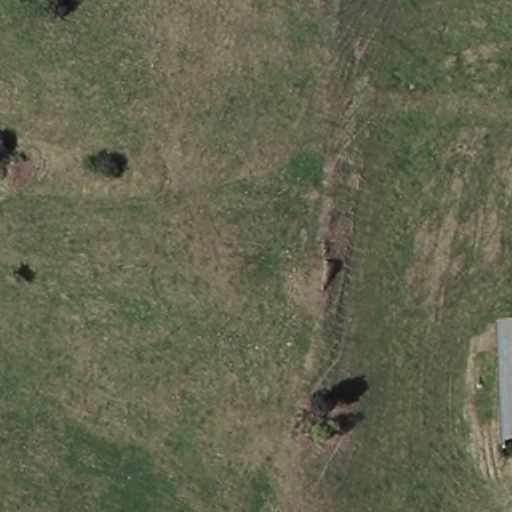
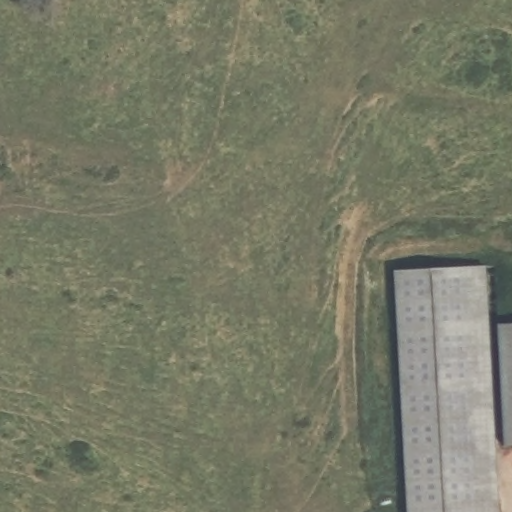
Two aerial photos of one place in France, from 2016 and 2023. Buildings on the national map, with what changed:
new [(495,268),(495,326),(497,443),(499,512),(401,512),(398,273),(495,268)]
unchanged [(512,443),(497,443),(495,326),(512,325),(512,443)]

